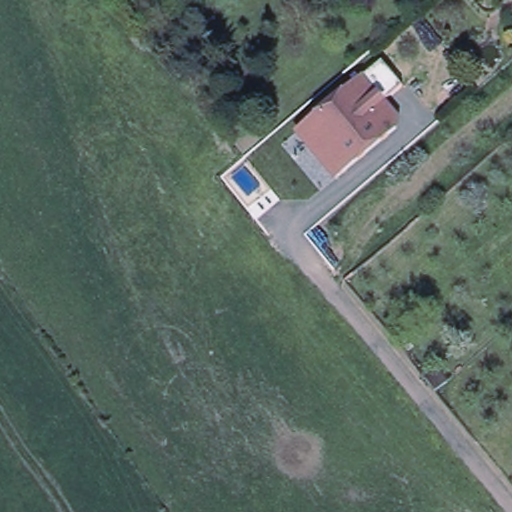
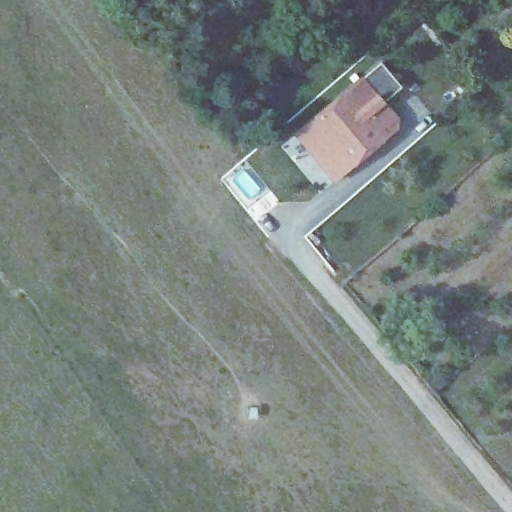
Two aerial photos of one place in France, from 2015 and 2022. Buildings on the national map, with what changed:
unchanged [(298,135),(382,63),(403,88),(385,104),(397,121),(396,131),(336,181),(331,175),(315,155),(298,135)]

